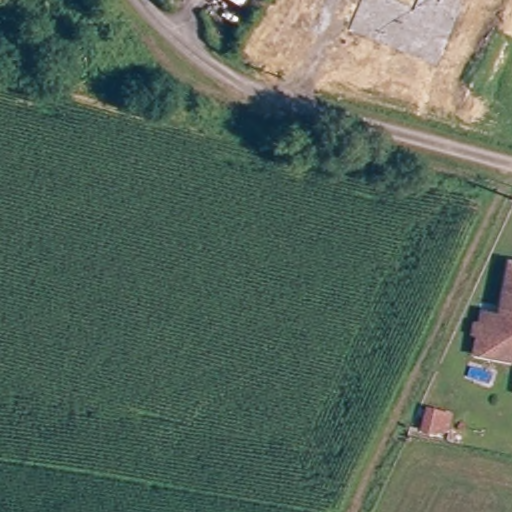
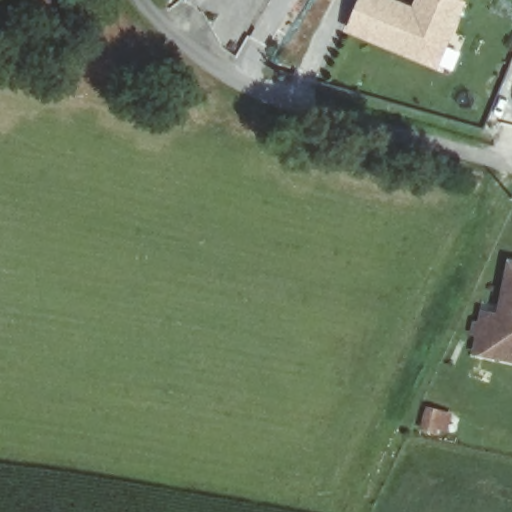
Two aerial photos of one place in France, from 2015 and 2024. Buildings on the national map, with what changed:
new [(469,4),(440,72),(348,33),(362,0),(393,0),(413,9),(418,0),(465,0),(464,1),(469,4)]
unchanged [(496,352),(479,349),(481,331),(474,330),(475,320),(482,321),(483,309),(500,310),(505,257),(512,257),(512,353),(496,352)]

